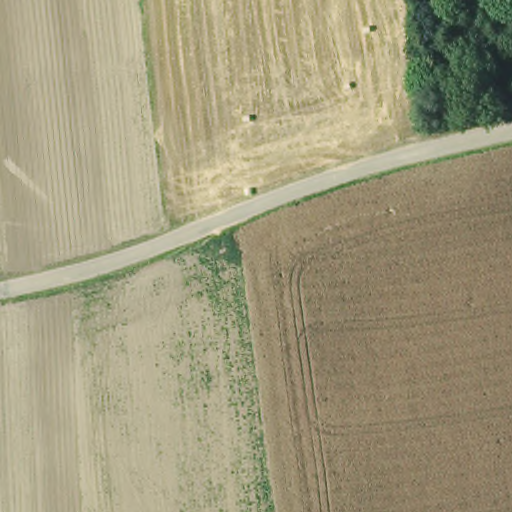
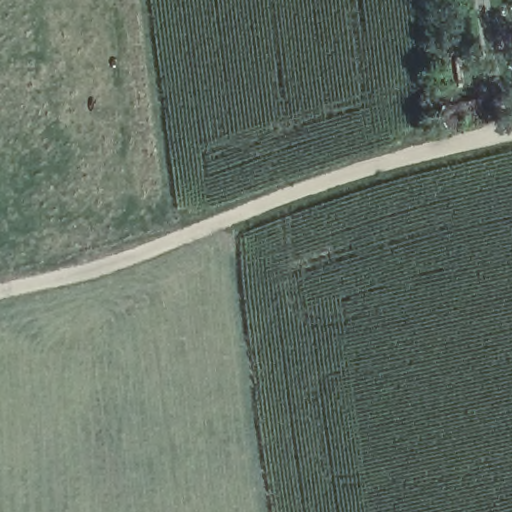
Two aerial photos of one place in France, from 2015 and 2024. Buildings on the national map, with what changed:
[]

